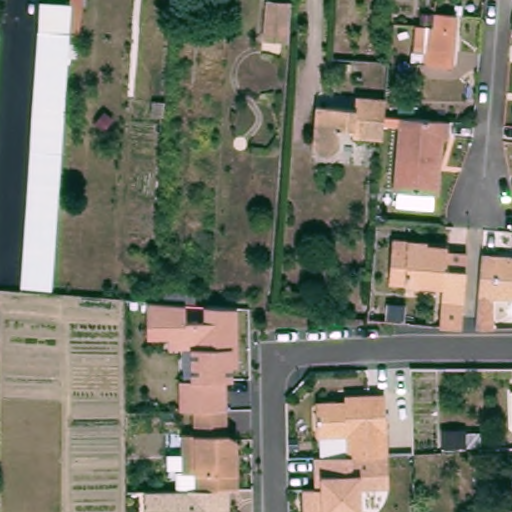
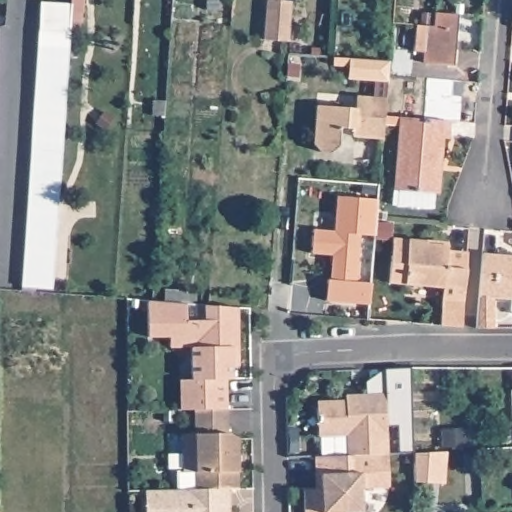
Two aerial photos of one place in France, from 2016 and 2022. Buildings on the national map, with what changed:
unchanged [(70,6),(71,0),(83,0),(82,18),(70,16),(52,292),(22,289),(41,5),(70,6)]
unchanged [(267,35),(268,25),(271,0),(296,0),(293,37),(267,35)]
unchanged [(420,52),(422,26),(437,26),(437,25),(439,13),(461,15),(457,66),(429,64),(418,63),(420,52)]
unchanged [(385,116),(383,141),(357,139),(357,131),(342,131),(341,145),(333,155),(323,154),(317,144),(320,106),(357,109),(358,96),(386,98),(385,116)]
unchanged [(451,122),(450,139),(447,138),(442,195),(437,194),(435,209),(400,206),(401,192),(396,192),(402,118),(451,122)]
new [(327,280),(330,279),(332,255),(312,254),(314,230),(334,230),(337,197),(377,200),(375,235),(358,234),(356,281),(371,283),(369,304),(326,301),(327,280)]
unchanged [(467,303),(466,328),(445,326),(446,301),(447,289),(396,284),(400,241),(433,244),(434,246),(452,248),(452,252),(472,254),(467,303)]
unchanged [(512,253),(512,295),(494,294),(492,324),(477,324),(480,293),(482,251),(512,253)]
unchanged [(199,295),(197,307),(165,304),(166,293),(199,295)]
unchanged [(180,408),(180,379),(191,379),(191,347),(169,346),(169,337),(147,336),(148,301),(165,304),(187,306),(187,319),(205,318),(204,306),(238,308),(237,377),(227,377),(229,406),(197,408),(180,408)]
unchanged [(347,397),(347,392),(386,391),(391,454),(351,456),(350,436),(322,437),(319,400),(347,397)]
unchanged [(229,406),(229,434),(241,435),(242,486),(231,488),(231,512),(147,512),(147,489),(199,486),(197,432),(197,408),(229,406)]
unchanged [(391,454),(391,489),(366,490),(366,511),(346,511),(346,512),(304,512),(303,487),(318,486),(317,457),(351,456),(391,454)]

